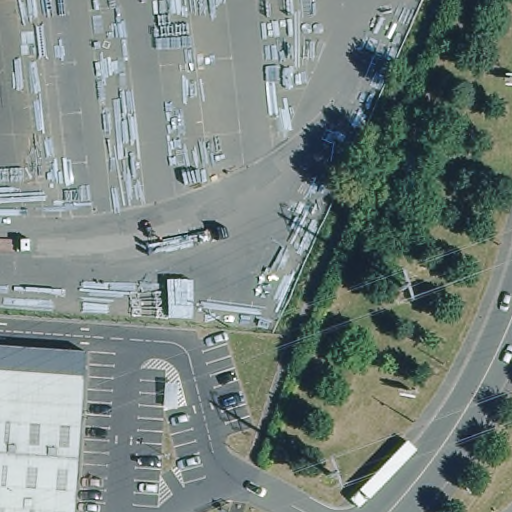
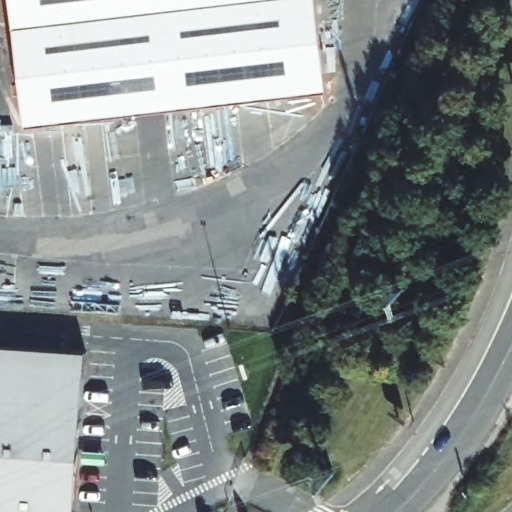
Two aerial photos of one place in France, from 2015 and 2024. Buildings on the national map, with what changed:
new [(327,85),(29,124),(13,0),(318,0),(327,85)]
new [(0,345),(87,351),(86,372),(0,368),(0,345)]
unchanged [(76,512),(0,512),(0,368),(86,372),(76,512)]

